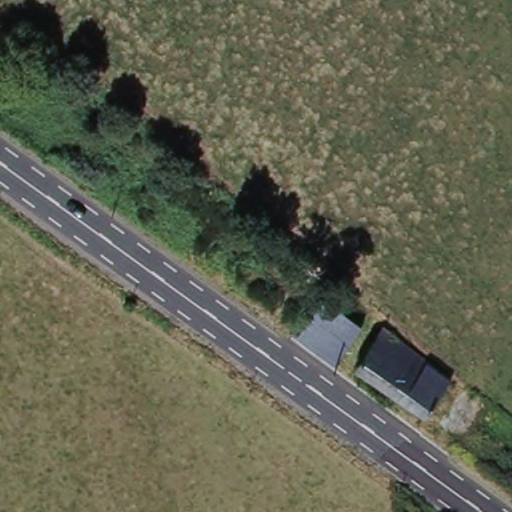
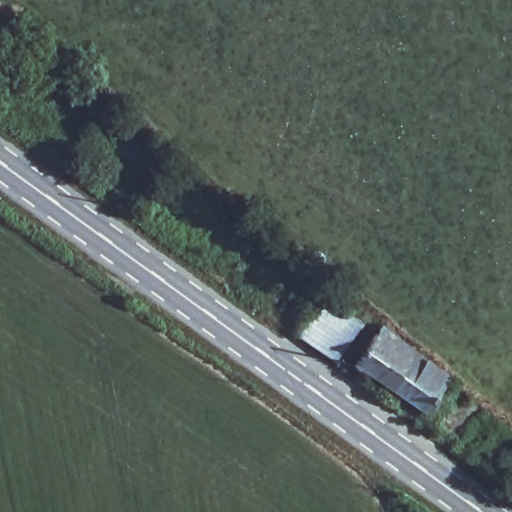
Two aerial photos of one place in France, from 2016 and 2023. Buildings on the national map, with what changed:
unchanged [(299,333),(329,292),(369,319),(339,363),(299,333)]
unchanged [(379,332),(463,390),(440,424),(355,366),(379,332)]

